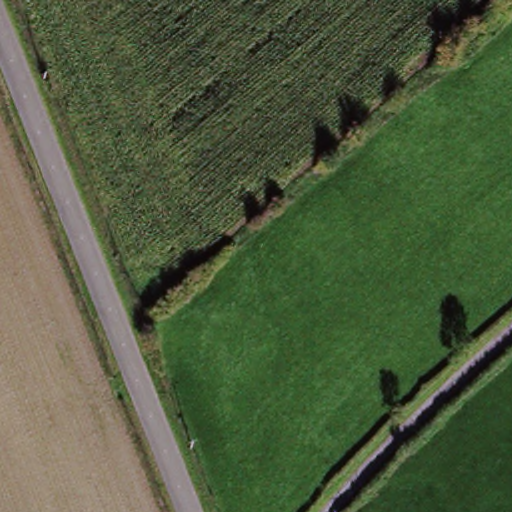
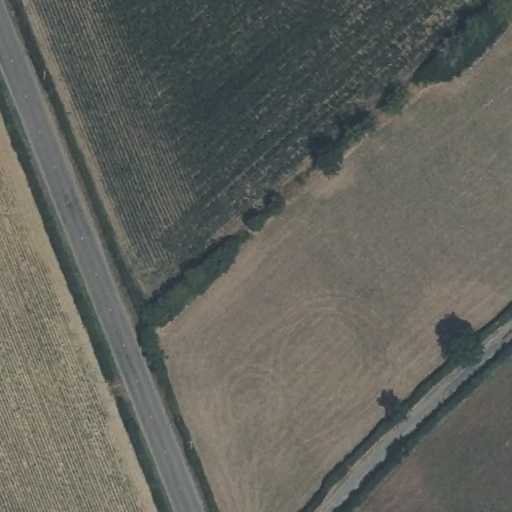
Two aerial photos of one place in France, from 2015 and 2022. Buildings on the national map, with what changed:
[]

